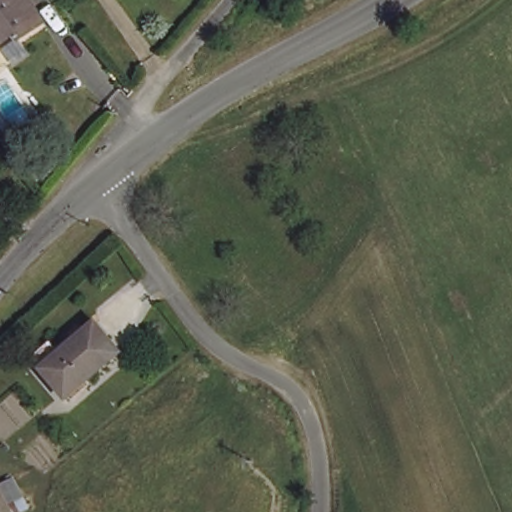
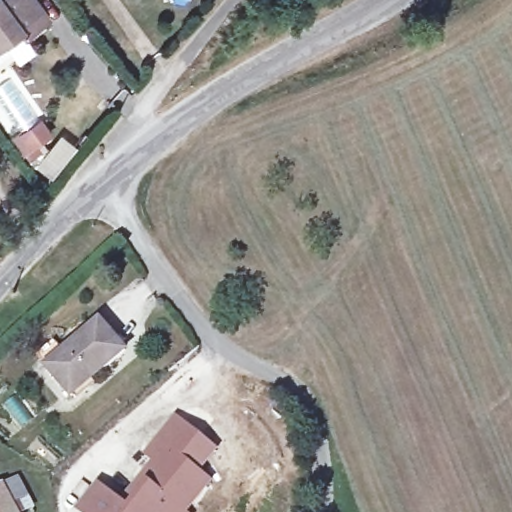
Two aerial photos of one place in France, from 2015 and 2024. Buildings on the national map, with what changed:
unchanged [(38,28),(16,44),(11,36),(0,44),(0,6),(9,0),(19,0),(38,28)]
new [(43,119),(54,137),(18,158),(9,141),(43,119)]
unchanged [(46,366),(100,320),(125,350),(72,396),(46,366)]
new [(166,466),(149,453),(177,418),(200,436),(215,448),(198,470),(210,479),(185,511),(186,512),(133,512),(123,504),(134,489),(142,496),(166,466)]
new [(100,486),(123,504),(133,512),(86,512),(82,509),(100,486)]
unchanged [(14,512),(0,512),(0,492),(5,489),(9,506),(14,512)]

